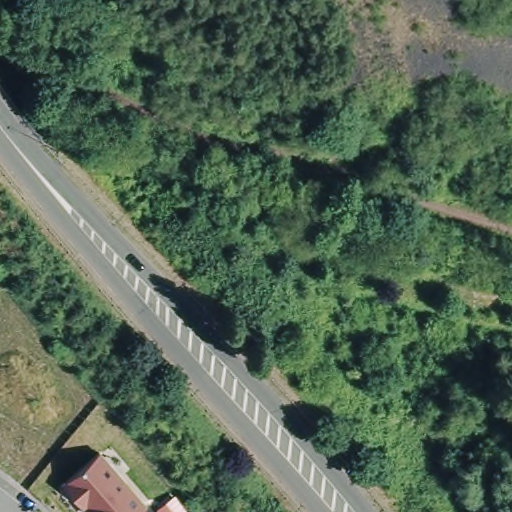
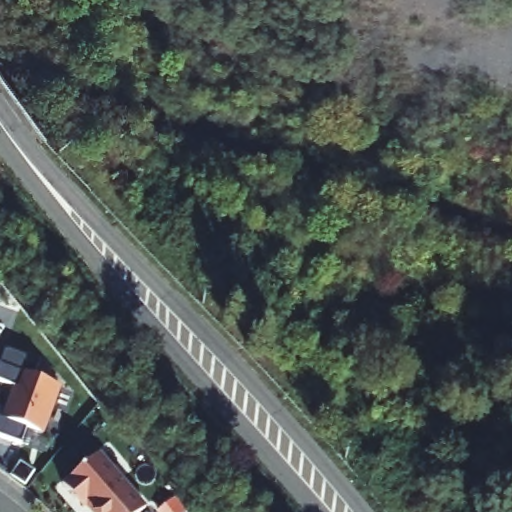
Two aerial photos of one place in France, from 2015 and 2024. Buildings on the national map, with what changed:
new [(38,362),(32,378),(58,387),(44,430),(28,425),(19,450),(0,443),(0,358),(3,350),(38,362)]
unchanged [(93,450),(142,503),(133,512),(88,512),(61,480),(93,450)]

